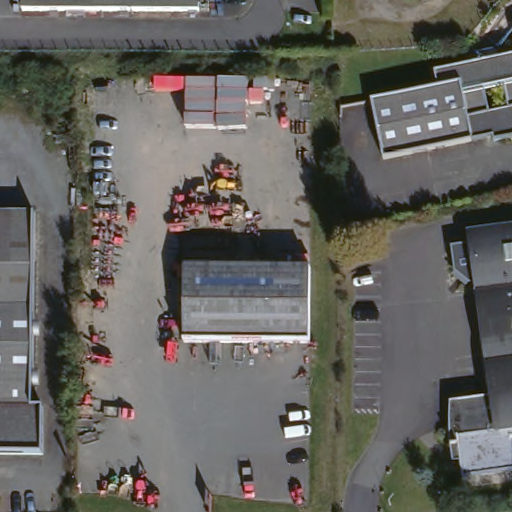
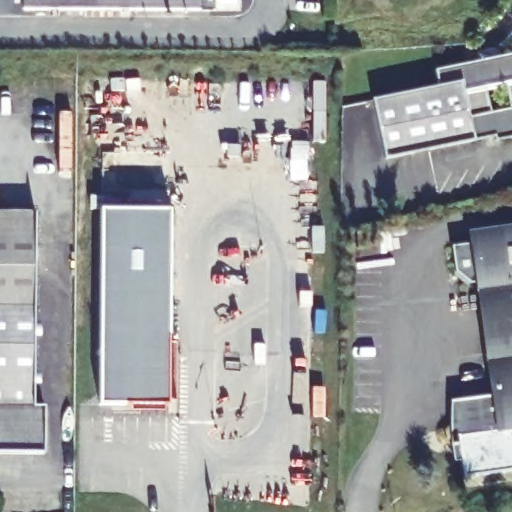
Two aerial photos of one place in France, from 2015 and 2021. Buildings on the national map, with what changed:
unchanged [(198,12),(24,11),(24,0),(198,0),(198,12)]
unchanged [(504,83),(484,88),(488,108),(476,112),(468,114),(469,116),(472,136),(426,145),(383,154),(378,130),(372,96),(404,89),(437,82),(435,66),(512,48),(512,103),(508,104),(504,83)]
unchanged [(492,132),(472,136),(469,116),(468,114),(476,112),(488,108),(508,104),(512,103),(512,133),(493,137),(492,132)]
new [(100,210),(170,211),(168,406),(98,406),(100,210)]
unchanged [(36,213),(36,227),(0,226),(0,213),(36,213)]
unchanged [(36,227),(32,406),(44,407),(42,455),(0,454),(0,226),(36,227)]
unchanged [(512,472),(462,479),(452,437),(450,397),(487,399),(472,232),(512,226),(512,472)]
demolished [(310,270),(310,343),(186,341),(186,268),(310,270)]

